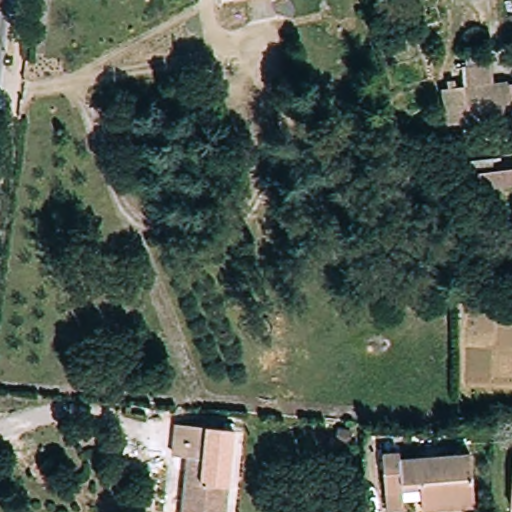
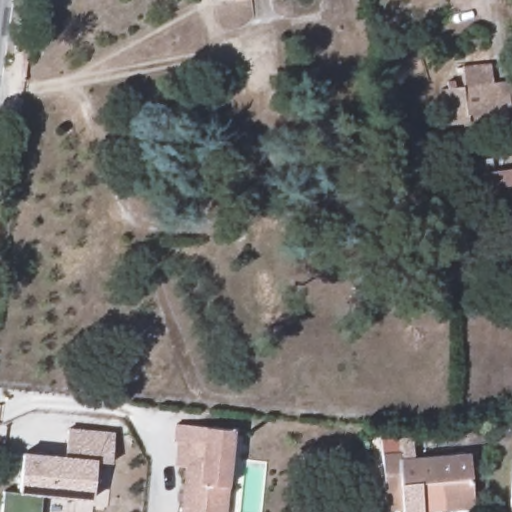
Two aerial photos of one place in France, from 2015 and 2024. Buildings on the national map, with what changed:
unchanged [(455,69),(485,66),(487,84),(502,82),(502,85),(512,84),(512,109),(505,110),(504,108),(493,109),(495,124),(462,127),(462,123),(440,125),(436,89),(457,87),(455,69)]
unchanged [(491,172),(512,169),(512,185),(471,190),(468,164),(490,161),(491,172)]
unchanged [(442,194),(441,206),(422,205),(423,193),(442,194)]
unchanged [(224,512),(181,512),(186,458),(171,457),(175,425),(232,431),(224,512)]
new [(20,497),(23,458),(61,460),(62,433),(109,436),(107,463),(91,462),(88,500),(43,497),(42,512),(2,512),(4,495),(20,497)]
unchanged [(398,449),(398,456),(468,450),(472,503),(421,507),(419,488),(400,489),(401,504),(386,505),(381,451),(398,449)]
unchanged [(512,472),(512,507),(510,506),(512,472)]

